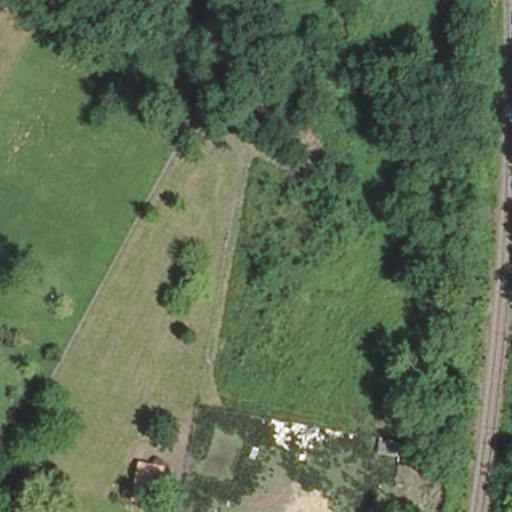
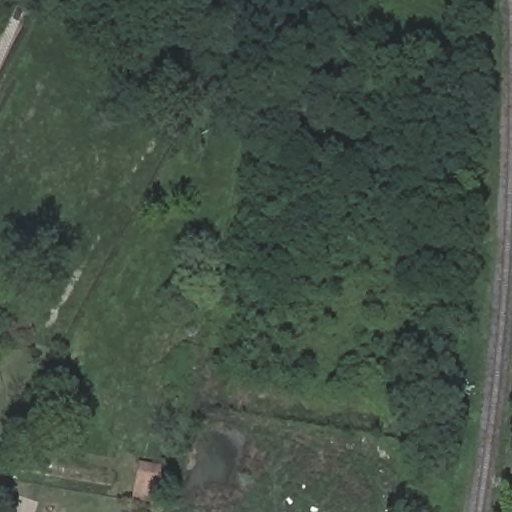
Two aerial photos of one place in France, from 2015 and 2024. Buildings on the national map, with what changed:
unchanged [(164,465),(157,503),(130,500),(137,461),(164,465)]

